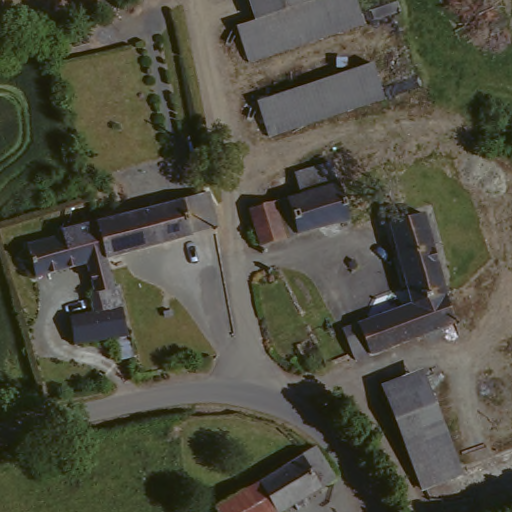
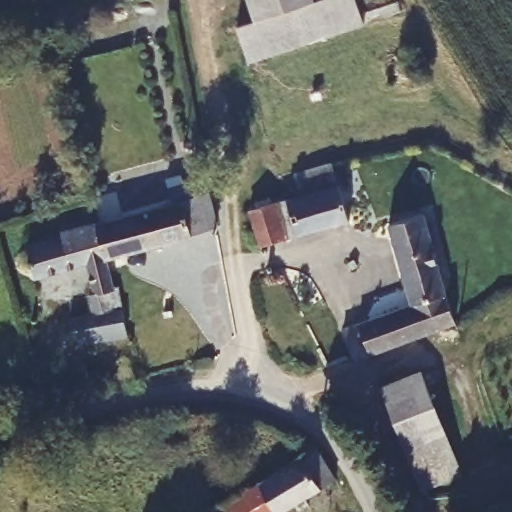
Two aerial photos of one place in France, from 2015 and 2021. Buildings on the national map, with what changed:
unchanged [(318,0),(359,0),(367,22),(253,63),(241,27),(261,20),(318,0)]
unchanged [(261,20),(253,0),(318,0),(261,20)]
demolished [(378,63),(389,97),(276,137),(264,102),(378,63)]
unchanged [(305,191),(300,170),(333,160),(339,180),(342,179),(354,216),(265,240),(255,205),(305,191)]
unchanged [(191,196),(199,232),(114,254),(103,215),(140,206),(191,196)]
unchanged [(419,300),(397,218),(431,208),(463,318),(365,355),(352,324),(419,300)]
unchanged [(114,254),(121,284),(105,288),(98,259),(83,263),(74,231),(71,223),(103,215),(114,254)]
unchanged [(74,231),(83,263),(45,273),(44,269),(39,270),(32,268),(31,266),(28,262),(28,258),(29,253),(33,249),(38,246),(36,241),(74,231)]
unchanged [(130,336),(80,344),(76,328),(74,318),(91,315),(125,310),(126,320),(130,335),(130,336)]
unchanged [(421,368),(471,472),(429,488),(385,384),(421,368)]
unchanged [(315,504),(303,511),(300,505),(288,512),(283,512),(281,508),(267,482),(319,450),(327,448),(344,480),(312,499),(315,504)]
unchanged [(275,512),(226,512),(223,507),(267,482),(281,508),(275,512)]

